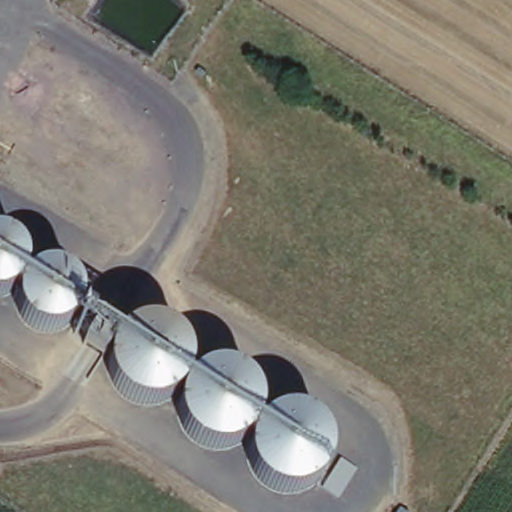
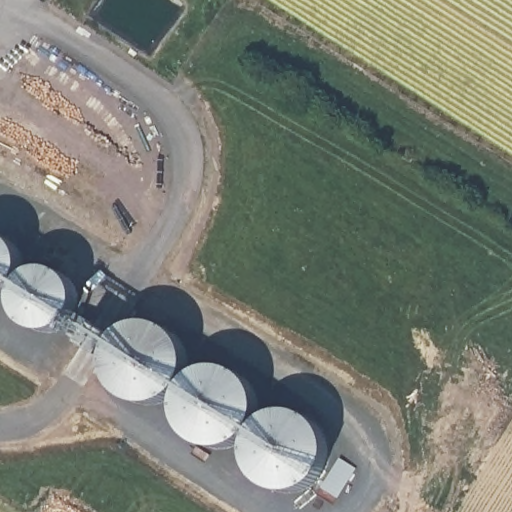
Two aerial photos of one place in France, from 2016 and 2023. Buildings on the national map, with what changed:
unchanged [(43,268),(55,270),(63,274),(74,281),(79,291),(80,306),(75,317),(115,338),(124,330),(134,325),(149,323),(168,329),(174,333),(183,342),(188,359),(189,377),(195,373),(209,367),(228,370),(242,377),(256,391),(258,412),(256,424),(270,415),(285,409),(302,413),(317,423),(325,436),(332,453),(328,470),(318,488),(301,493),(287,495),(272,492),(254,476),(249,467),(247,457),(248,446),(245,445),(229,453),(210,452),(195,446),(186,437),(179,424),(177,413),(177,398),(164,405),(144,408),(135,408),(121,400),(113,385),(108,372),(108,366),(109,355),(68,331),(57,333),(41,335),(34,332),(23,323),(14,307),(12,297),(3,300),(0,300),(0,235),(14,239),(22,247),(26,254),(27,263),(25,273),(33,270),(43,268)]

